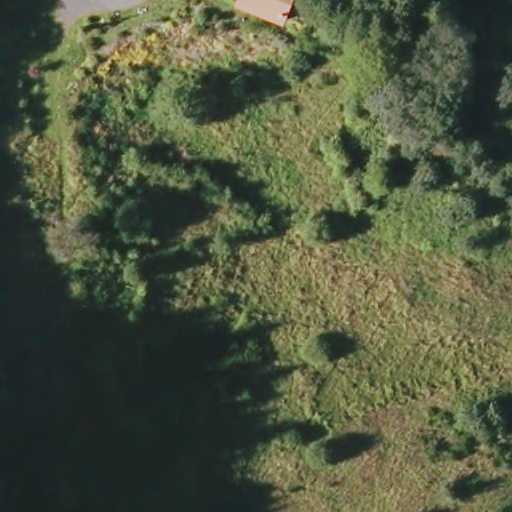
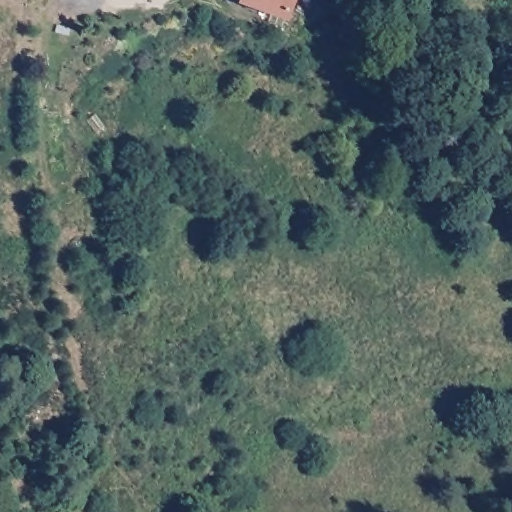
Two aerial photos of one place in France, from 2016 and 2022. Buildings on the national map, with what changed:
unchanged [(280,21),(233,5),(234,0),(287,0),(280,21)]

